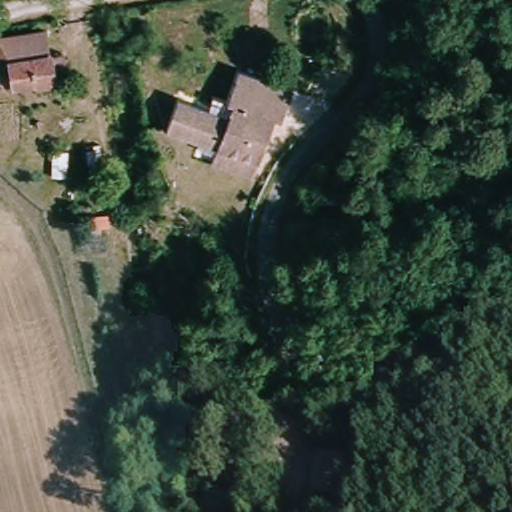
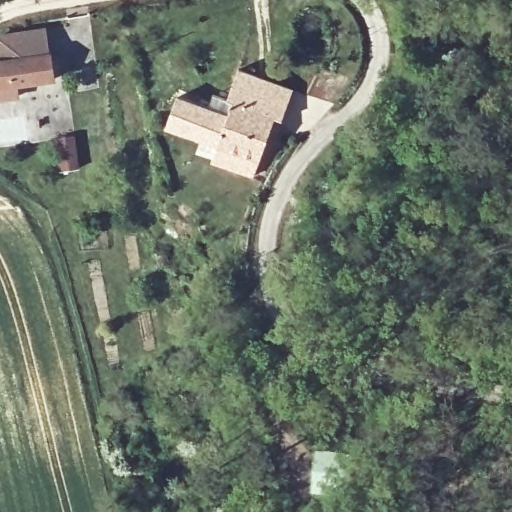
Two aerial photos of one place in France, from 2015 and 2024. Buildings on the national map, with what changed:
unchanged [(55,86),(0,86),(0,36),(45,29),(50,51),(55,86)]
unchanged [(177,97),(209,109),(214,94),(228,100),(239,71),(277,84),(295,90),(283,121),(275,118),(257,163),(253,178),(212,163),(218,147),(165,128),(177,97)]
unchanged [(357,456),(352,499),(312,494),(317,447),(357,456)]

